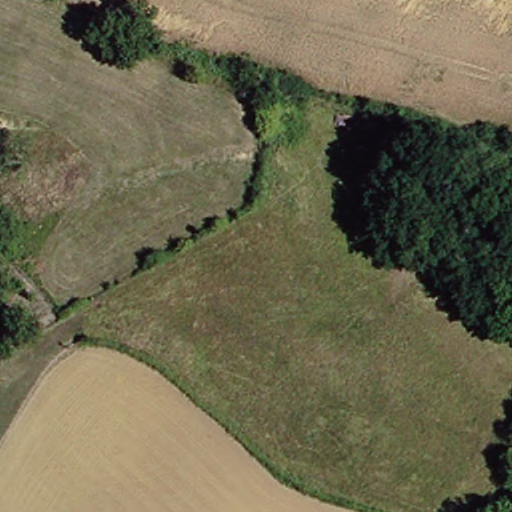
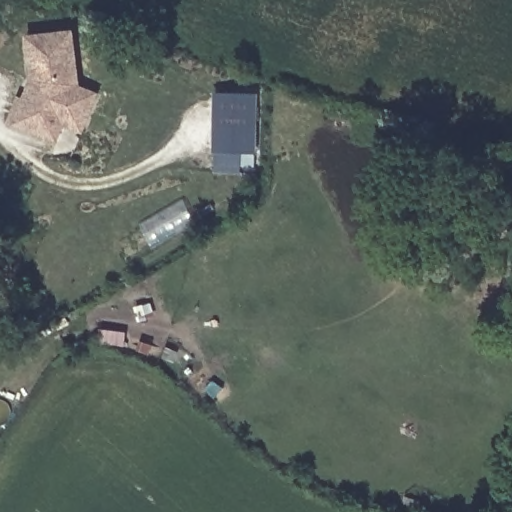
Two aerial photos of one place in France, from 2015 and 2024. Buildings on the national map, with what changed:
new [(74,30),(81,85),(99,92),(82,134),(64,127),(58,145),(6,124),(15,95),(23,97),(30,78),(25,35),(74,30)]
new [(214,92),(258,94),(257,151),(213,150),(214,92)]

